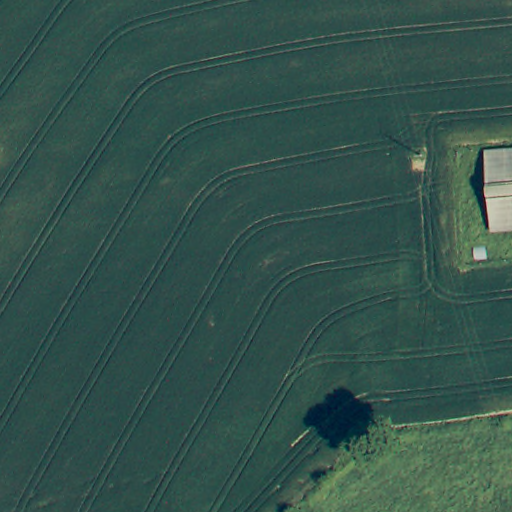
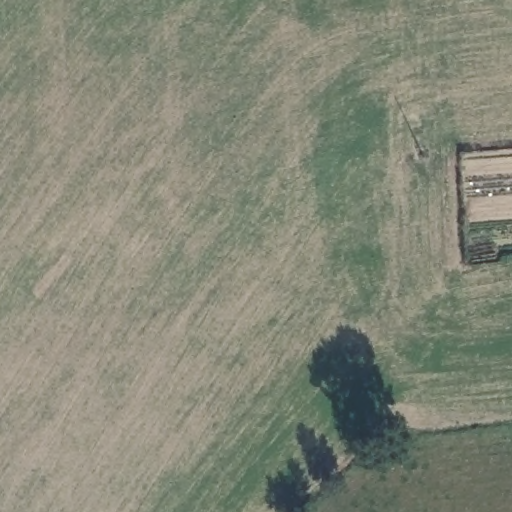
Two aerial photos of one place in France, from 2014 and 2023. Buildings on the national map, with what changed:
demolished [(482,152),(512,150),(512,232),(491,234),(482,152)]

